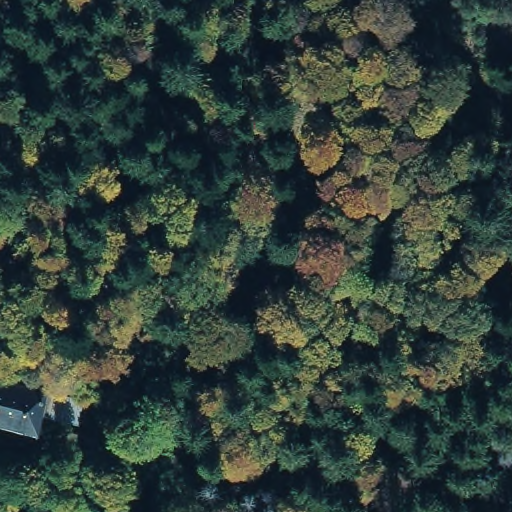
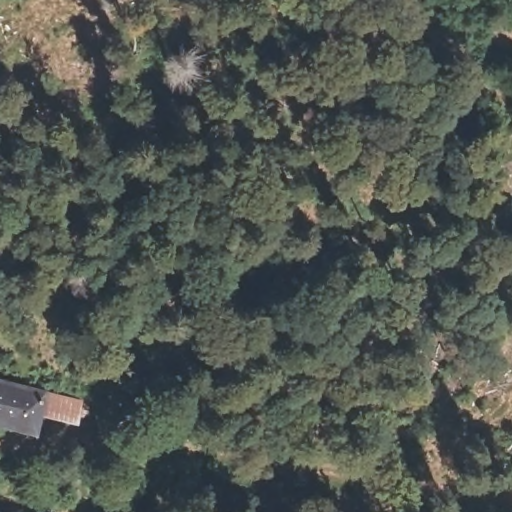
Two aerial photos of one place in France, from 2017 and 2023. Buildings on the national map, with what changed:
unchanged [(42,405),(32,434),(0,425),(0,375),(88,400),(85,417),(42,405)]
unchanged [(177,479),(156,479),(156,461),(177,462),(177,479)]

